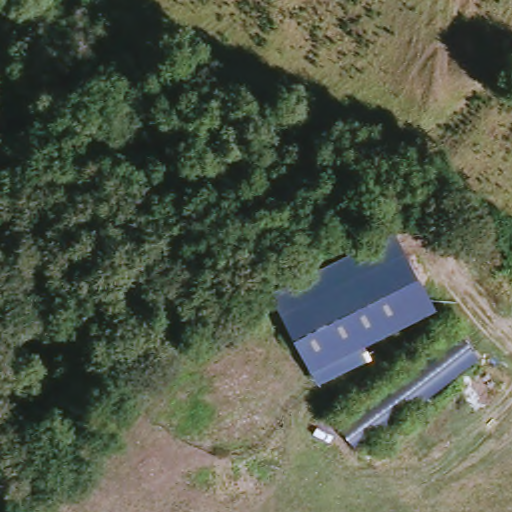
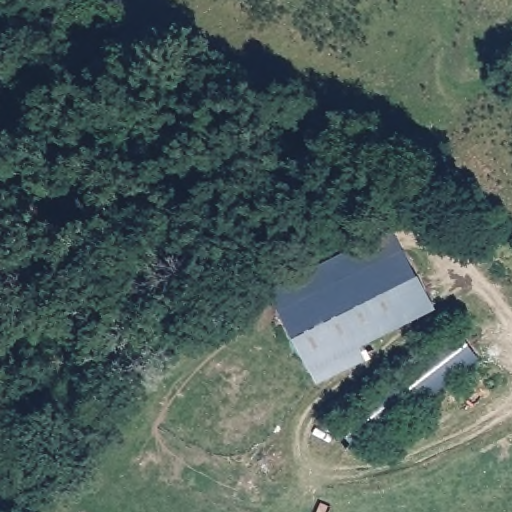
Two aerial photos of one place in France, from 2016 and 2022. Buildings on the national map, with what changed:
unchanged [(274,291),(397,231),(440,309),(314,376),(274,291)]
unchanged [(483,356),(363,449),(336,419),(458,325),(483,356)]

